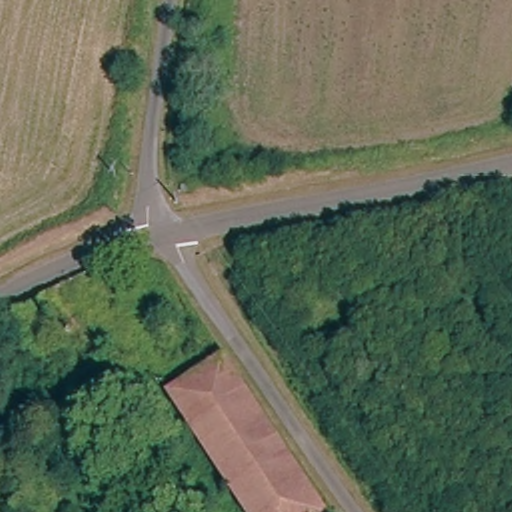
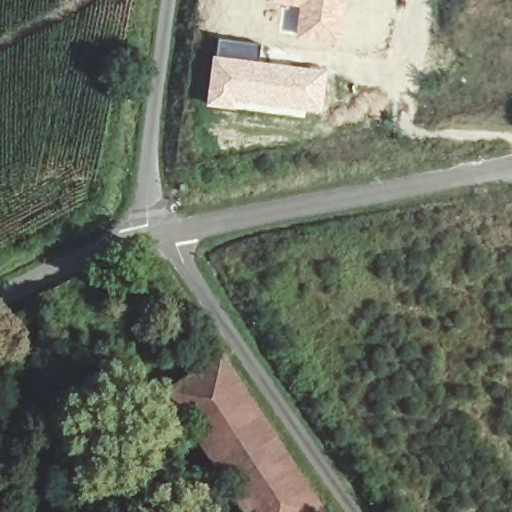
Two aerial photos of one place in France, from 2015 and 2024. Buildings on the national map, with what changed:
new [(348,0),(345,20),(340,50),(276,36),(280,4),(266,2),(266,0),(348,0)]
new [(218,40),(260,46),(258,62),(327,72),(321,116),(306,114),(305,118),(235,109),(235,112),(206,109),(214,57),(218,40)]
unchanged [(222,467),(176,400),(216,371),(311,512),(253,512),(222,467)]

